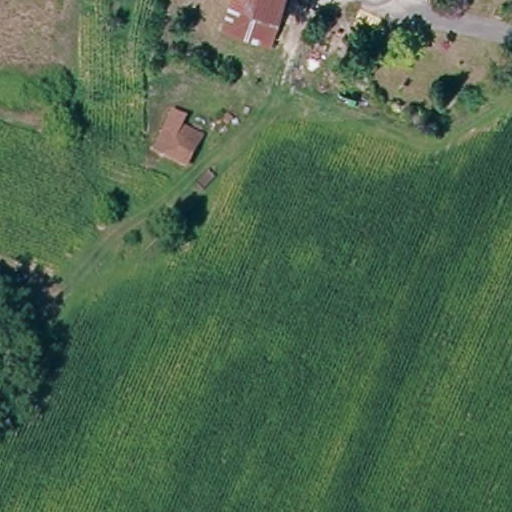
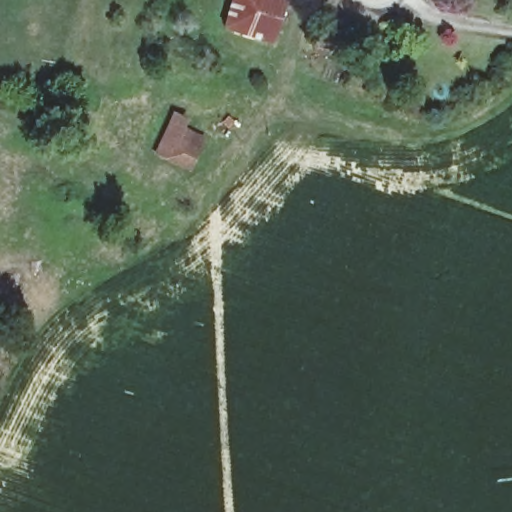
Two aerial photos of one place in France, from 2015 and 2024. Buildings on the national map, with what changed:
unchanged [(221,38),(235,0),(280,0),(262,52),(221,38)]
unchanged [(174,145),(197,152),(189,175),(180,172),(152,162),(165,124),(179,129),(174,145)]

